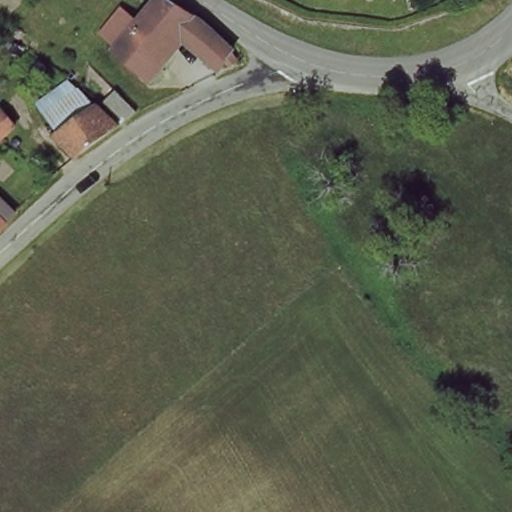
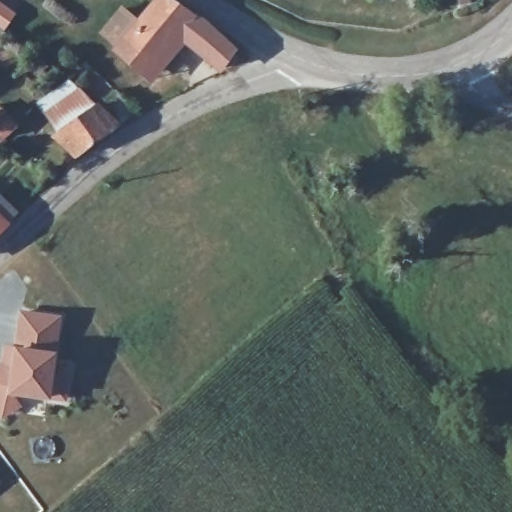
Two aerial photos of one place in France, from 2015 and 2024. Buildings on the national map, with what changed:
unchanged [(236,56),(220,72),(187,44),(163,70),(156,63),(145,76),(112,52),(164,2),(220,40),(236,56)]
unchanged [(100,105),(112,92),(147,116),(126,123),(100,105)]
unchanged [(55,144),(61,139),(46,120),(76,96),(92,111),(115,132),(75,164),(55,144)]
unchanged [(3,130),(0,133),(0,127),(3,130)]
unchanged [(14,218),(0,232),(0,204),(14,218)]
new [(18,309),(60,315),(51,350),(56,351),(54,361),(72,363),(66,401),(49,398),(19,394),(21,406),(0,417),(0,361),(2,344),(12,345),(18,309)]

